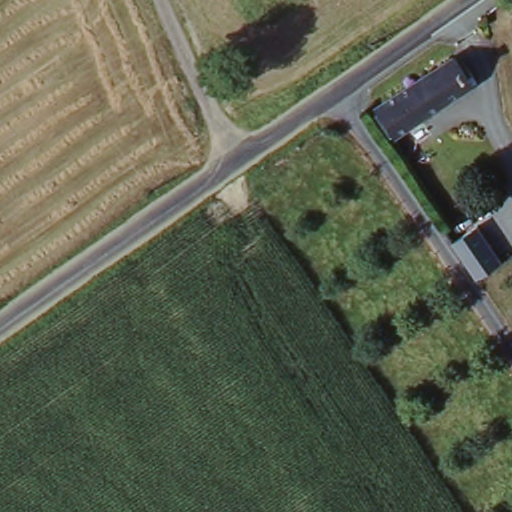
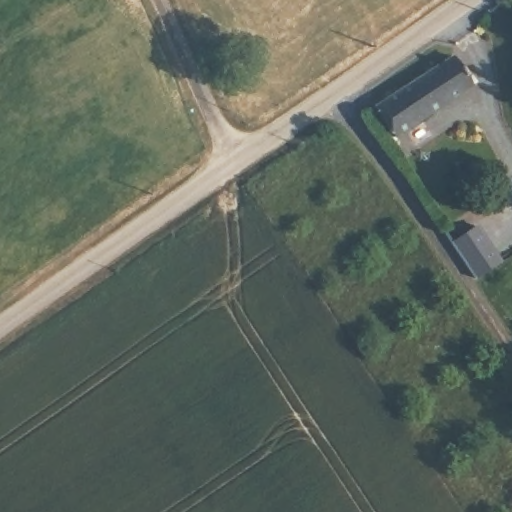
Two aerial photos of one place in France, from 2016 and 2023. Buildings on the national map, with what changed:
unchanged [(452,56),(469,82),(390,136),(372,109),(452,56)]
unchanged [(506,261),(481,283),(454,244),(479,227),(506,261)]

